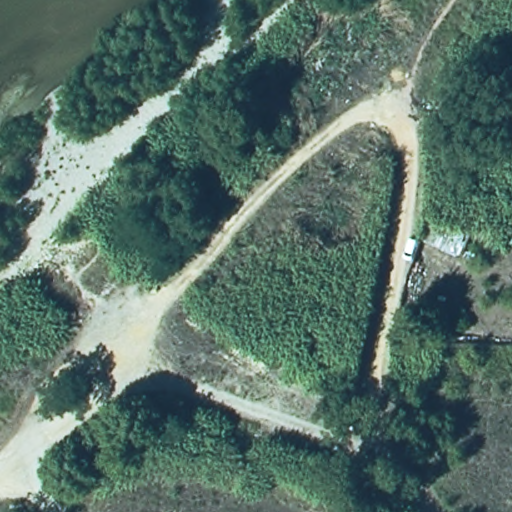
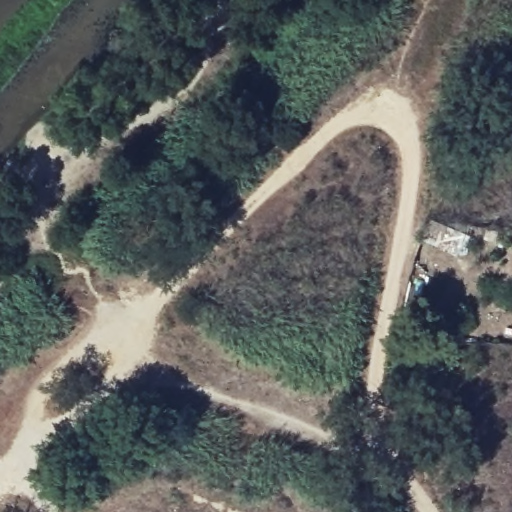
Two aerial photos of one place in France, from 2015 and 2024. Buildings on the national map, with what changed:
unchanged [(419,242),(430,216),(467,237),(460,257),(419,242)]

